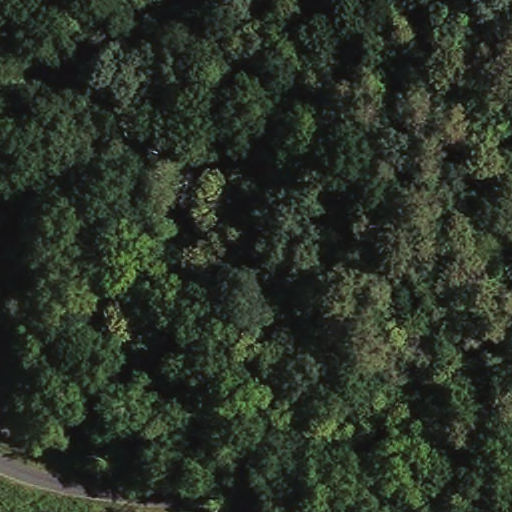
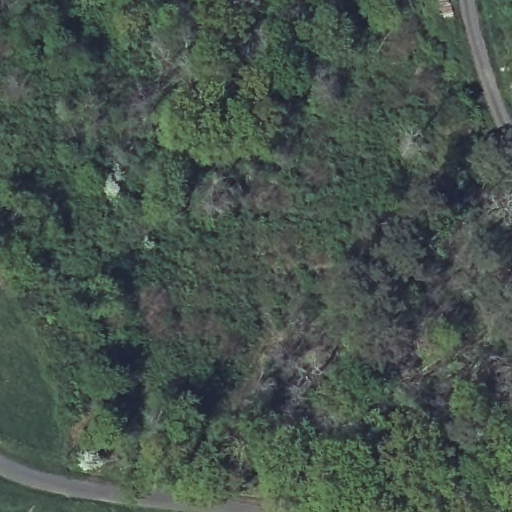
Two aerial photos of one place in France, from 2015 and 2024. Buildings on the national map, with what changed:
[]

